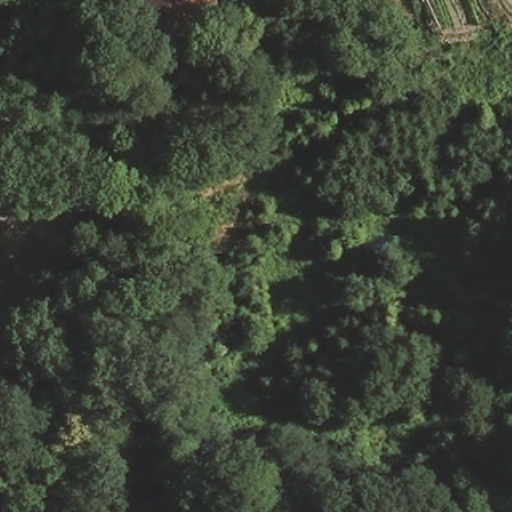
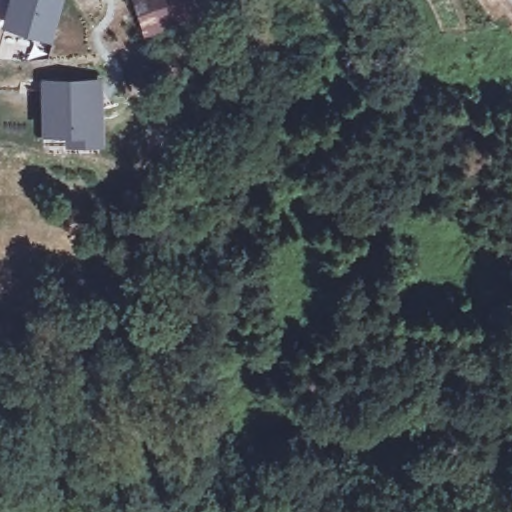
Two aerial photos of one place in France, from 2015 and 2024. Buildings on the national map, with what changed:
new [(0,25),(9,0),(63,0),(50,41),(0,25)]
unchanged [(216,0),(218,4),(133,40),(120,0),(216,0)]
new [(102,79),(103,145),(65,146),(65,133),(41,133),(41,80),(102,79)]

